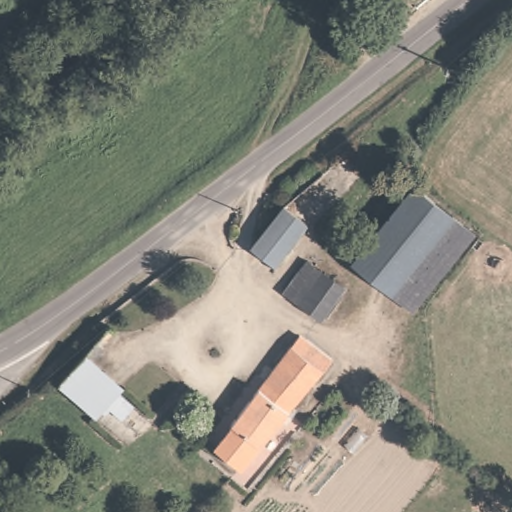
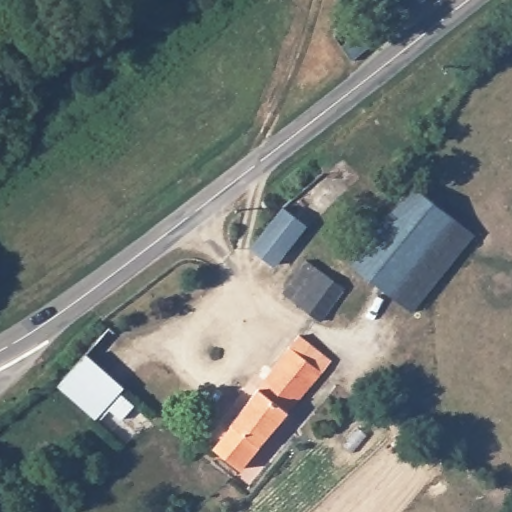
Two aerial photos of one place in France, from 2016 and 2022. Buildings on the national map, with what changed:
unchanged [(414,181),(474,229),(412,306),(352,259),(414,181)]
unchanged [(312,230),(268,259),(252,234),(295,204),(312,230)]
unchanged [(313,258),(349,288),(325,320),(311,309),(284,292),(313,258)]
unchanged [(305,323),(338,351),(234,479),(209,456),(305,323)]
unchanged [(122,390),(96,416),(89,410),(57,380),(86,354),(119,387),(122,390)]

